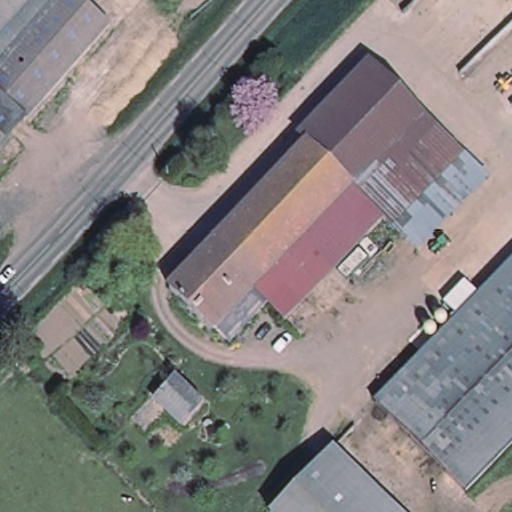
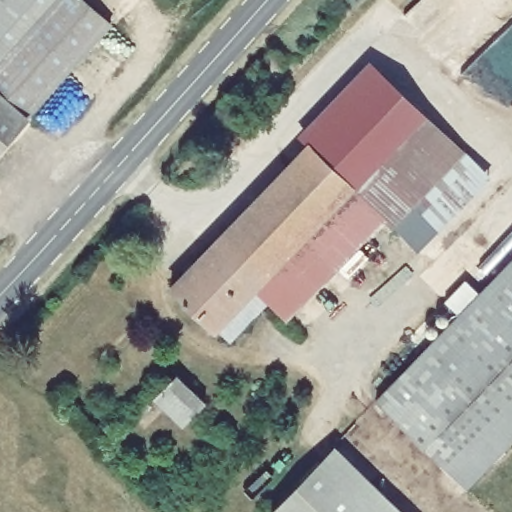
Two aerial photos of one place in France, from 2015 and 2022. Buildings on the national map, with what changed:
unchanged [(0,0),(34,0),(0,38),(0,0)]
unchanged [(57,0),(83,0),(111,26),(27,121),(0,98),(0,64),(0,65),(57,0)]
unchanged [(347,184),(301,145),(322,124),(324,126),(378,71),(484,174),(413,248),(379,214),(330,263),(299,229),(347,184)]
unchanged [(0,151),(0,98),(27,121),(0,151)]
unchanged [(211,323),(208,327),(165,286),(221,228),(301,145),(347,184),(299,229),(330,263),(280,315),(256,291),(219,331),(211,323)]
unchanged [(465,491),(376,403),(512,263),(512,443),(465,491)]
unchanged [(184,426),(168,410),(145,432),(131,417),(153,395),(156,398),(176,377),(206,405),(184,426)]
unchanged [(314,463),(331,445),(400,512),(266,512),(314,463)]

